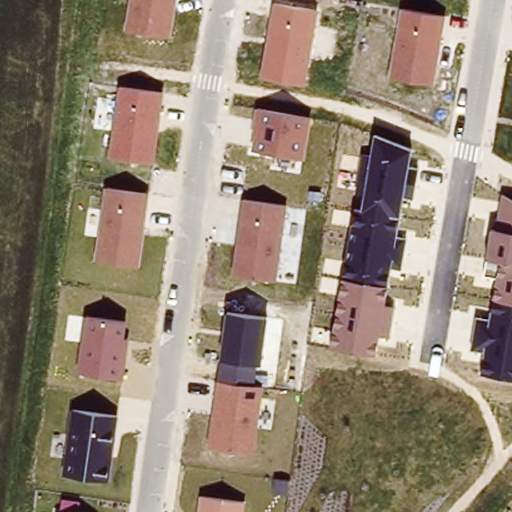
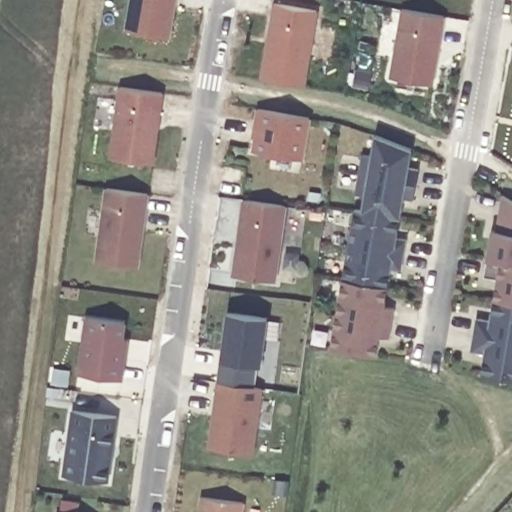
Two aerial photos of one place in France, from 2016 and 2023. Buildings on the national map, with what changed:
unchanged [(126,28),(131,0),(179,0),(170,38),(126,28)]
unchanged [(305,84),(260,76),(272,2),(319,10),(305,84)]
unchanged [(399,8),(444,16),(431,85),(387,78),(399,8)]
unchanged [(155,163),(110,156),(119,86),(167,92),(155,163)]
unchanged [(249,149),(257,109),(310,118),(302,159),(249,149)]
unchanged [(328,347),(352,209),(361,211),(364,192),(359,191),(364,155),(370,155),(374,133),(412,148),(409,164),(417,165),(413,196),(405,194),(397,236),(404,238),(399,267),(391,266),(385,303),(392,304),(389,340),(378,338),(375,355),(328,347)]
unchanged [(139,266),(96,259),(107,188),(150,193),(139,266)]
unchanged [(470,348),(475,317),(489,320),(495,277),(482,275),(488,228),(495,228),(500,195),(512,201),(512,380),(480,375),(485,351),(470,348)]
unchanged [(230,274),(240,199),(287,206),(274,280),(230,274)]
unchanged [(208,446),(225,310),(267,316),(261,365),(255,365),(252,386),(262,388),(254,453),(208,446)]
unchanged [(75,373),(84,314),(130,320),(120,381),(75,373)]
unchanged [(62,474),(72,409),(116,416),(106,480),(62,474)]
unchanged [(200,495),(244,502),(242,512),(197,512),(200,495)]

